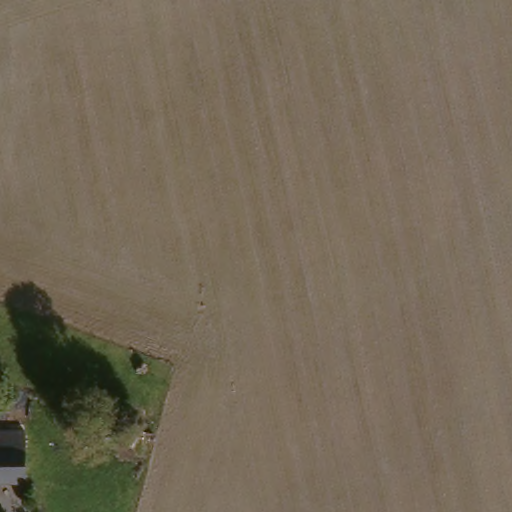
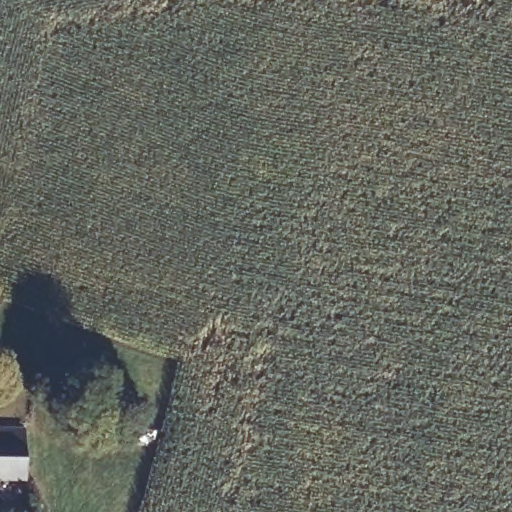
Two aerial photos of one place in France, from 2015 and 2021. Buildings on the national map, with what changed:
unchanged [(26,481),(0,481),(0,430),(25,430),(26,481)]

